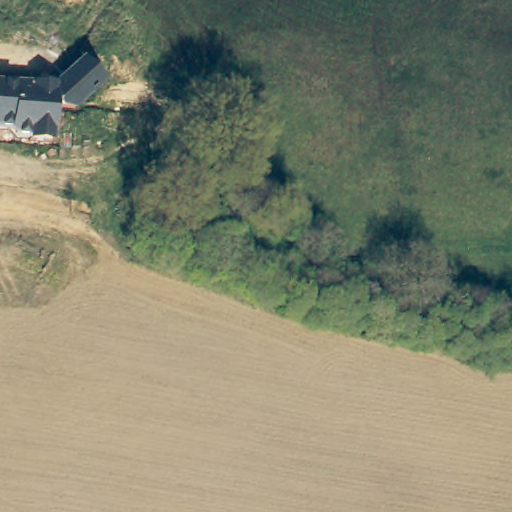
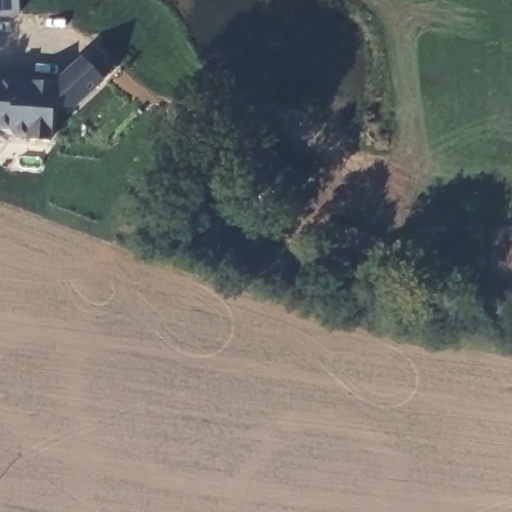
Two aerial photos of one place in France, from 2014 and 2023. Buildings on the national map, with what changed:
new [(20,17),(0,18),(0,0),(18,0),(20,17)]
unchanged [(59,108),(55,142),(31,142),(30,140),(15,140),(9,130),(0,129),(0,80),(57,82),(84,57),(103,84),(75,110),(59,108)]

